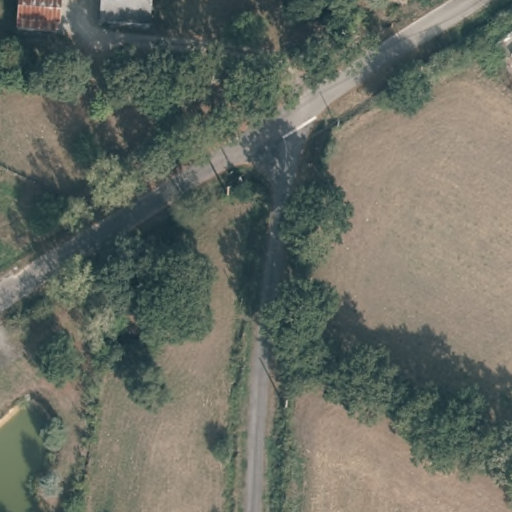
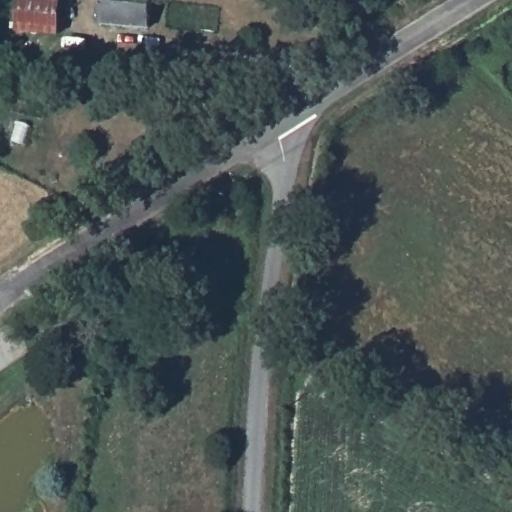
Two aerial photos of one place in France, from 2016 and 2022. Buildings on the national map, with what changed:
unchanged [(17,31),(18,0),(56,0),(56,31),(17,31)]
unchanged [(102,22),(103,0),(152,0),(150,25),(102,22)]

